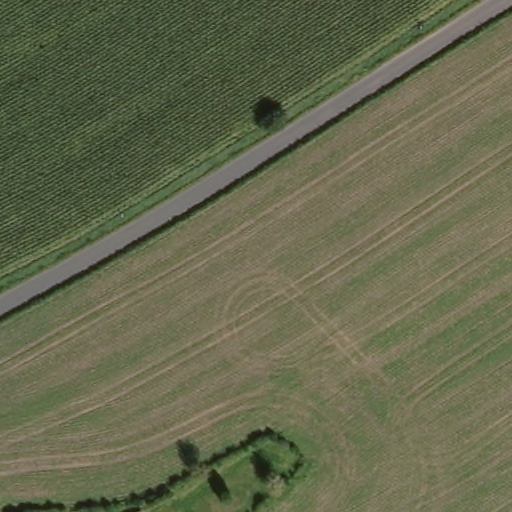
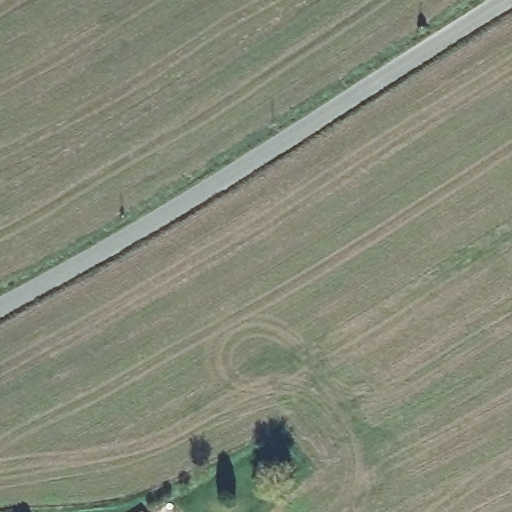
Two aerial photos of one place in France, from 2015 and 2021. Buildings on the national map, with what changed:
[]

